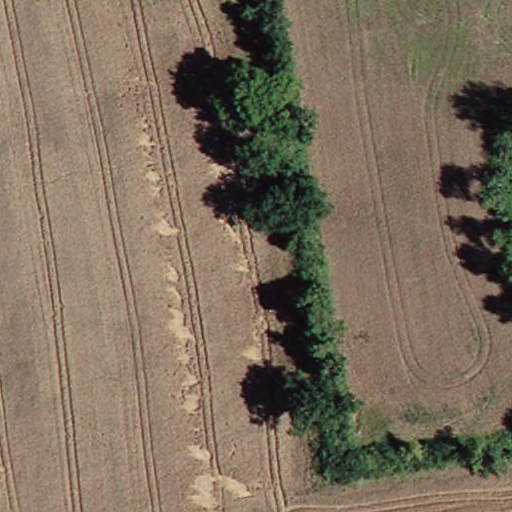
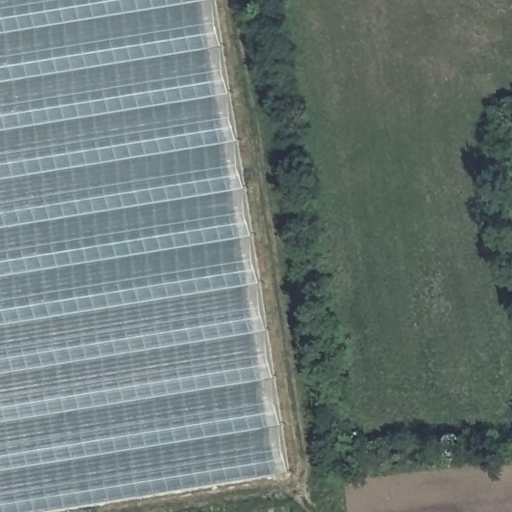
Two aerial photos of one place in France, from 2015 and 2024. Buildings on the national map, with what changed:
new [(56,512),(0,512),(0,0),(217,0),(291,474),(56,512)]

